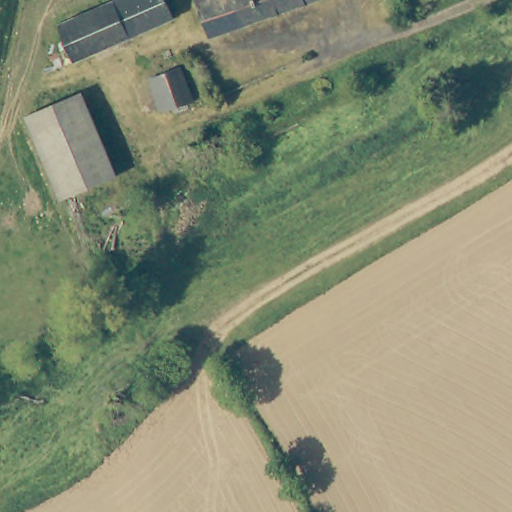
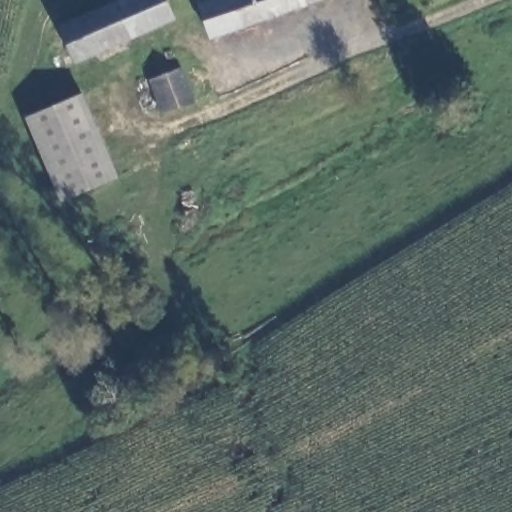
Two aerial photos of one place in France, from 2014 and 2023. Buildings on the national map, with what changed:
unchanged [(116,0),(166,0),(175,19),(75,63),(59,26),(113,1),(116,0)]
unchanged [(304,0),(211,33),(199,0),(304,0)]
unchanged [(161,112),(149,80),(182,66),(194,101),(161,112)]
unchanged [(115,180),(58,202),(25,117),(81,95),(115,180)]

